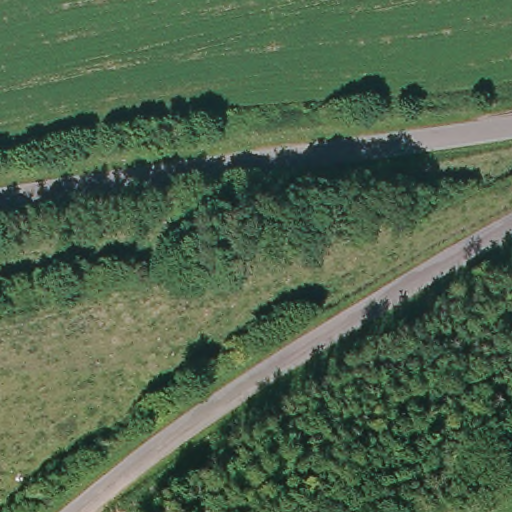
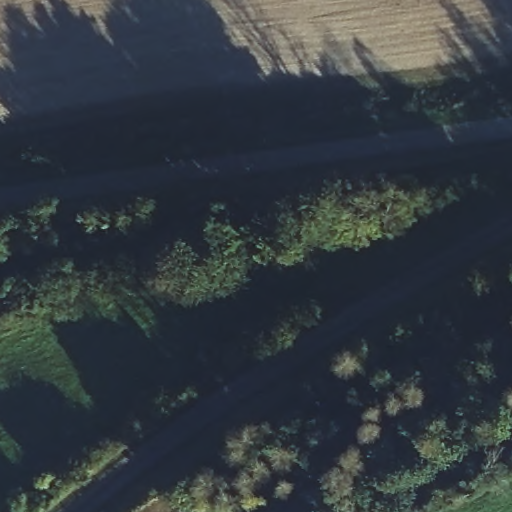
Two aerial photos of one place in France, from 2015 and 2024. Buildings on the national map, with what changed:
[]

